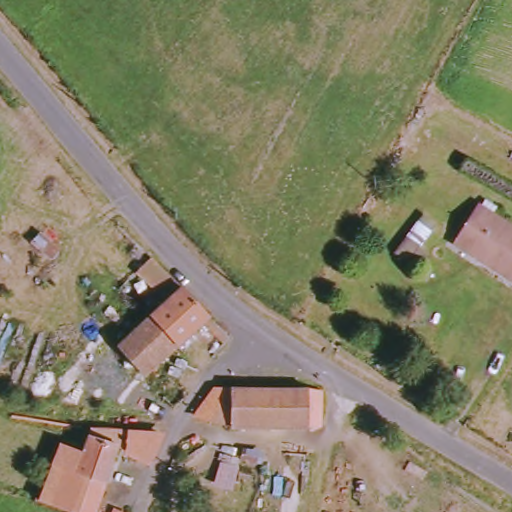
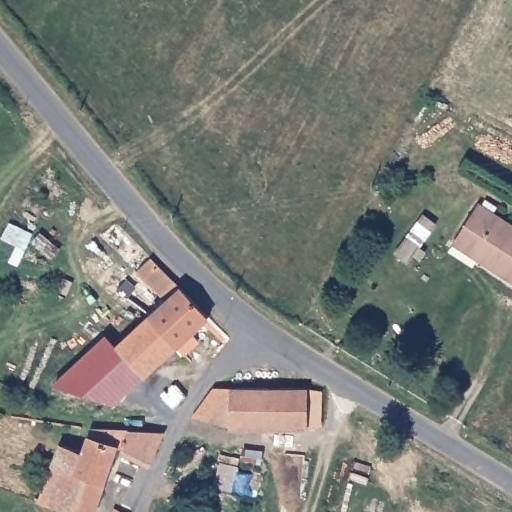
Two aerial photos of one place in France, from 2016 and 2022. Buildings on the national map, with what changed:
unchanged [(484,200),(511,220),(512,218),(512,280),(456,240),(484,200)]
unchanged [(144,271),(158,258),(188,288),(217,318),(193,339),(166,307),(174,301),(144,271)]
unchanged [(193,339),(147,378),(121,346),(166,307),(193,339)]
new [(56,381),(105,335),(118,350),(121,346),(146,376),(115,403),(56,381)]
unchanged [(312,389),(327,390),(328,428),(311,425),(237,428),(236,421),(205,430),(200,411),(218,393),(235,390),(312,389)]
unchanged [(61,447),(81,455),(90,435),(91,432),(159,430),(168,440),(158,459),(117,457),(100,512),(56,512),(44,507),(61,447)]

